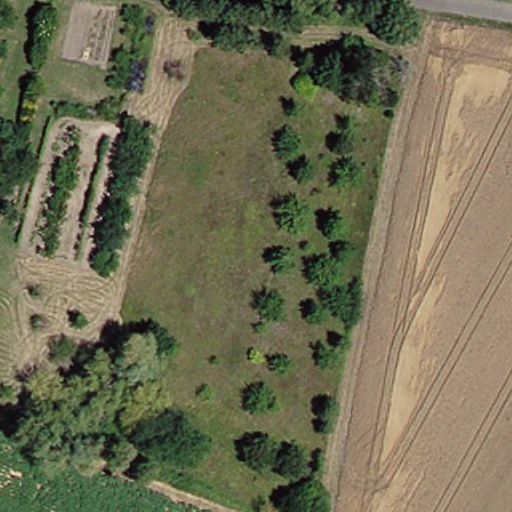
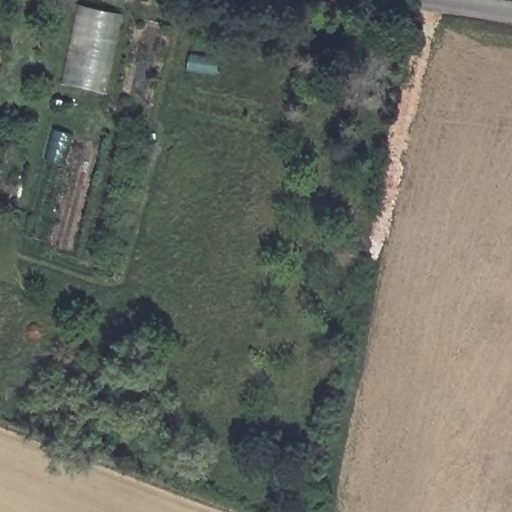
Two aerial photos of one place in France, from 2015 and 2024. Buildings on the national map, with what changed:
new [(64,84),(79,5),(124,14),(107,93),(64,84)]

